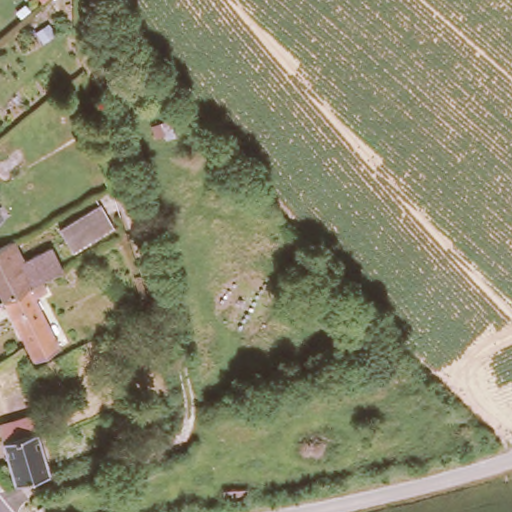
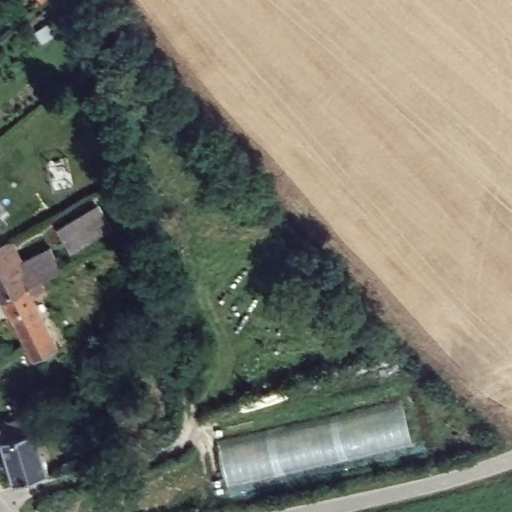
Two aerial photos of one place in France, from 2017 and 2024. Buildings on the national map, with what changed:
unchanged [(38,0),(47,0),(42,4),(38,0)]
unchanged [(99,203),(114,225),(75,249),(61,228),(99,203)]
unchanged [(0,219),(0,216),(2,218),(0,219)]
unchanged [(50,245),(62,267),(42,277),(3,298),(0,292),(0,242),(9,237),(21,260),(50,245)]
unchanged [(34,356),(3,298),(42,277),(47,288),(33,296),(59,343),(34,356)]
new [(219,441),(404,401),(412,440),(227,484),(219,441)]
unchanged [(0,424),(32,415),(45,472),(13,482),(0,424)]

